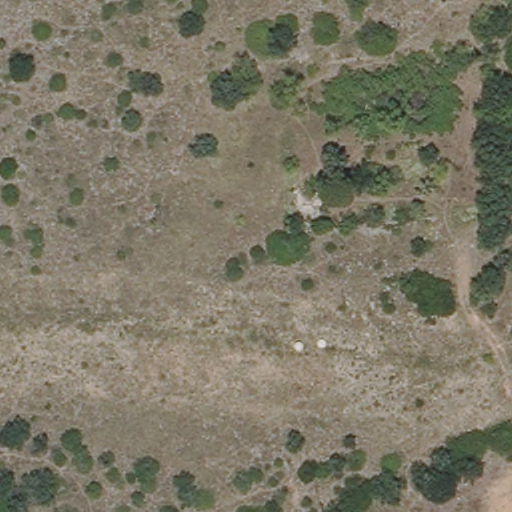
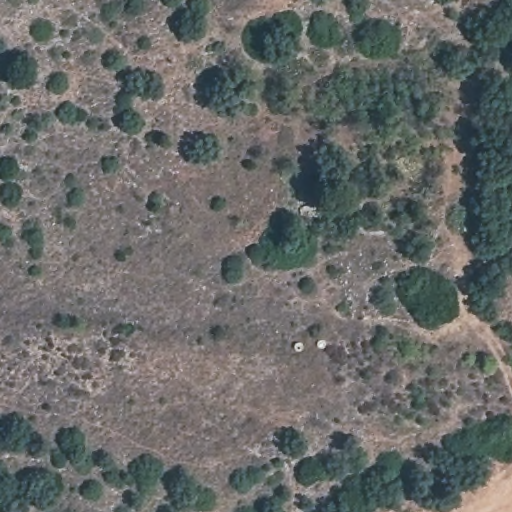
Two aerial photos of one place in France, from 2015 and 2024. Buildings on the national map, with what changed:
unchanged [(301,211),(302,191),(324,190),(324,212),(301,211)]

